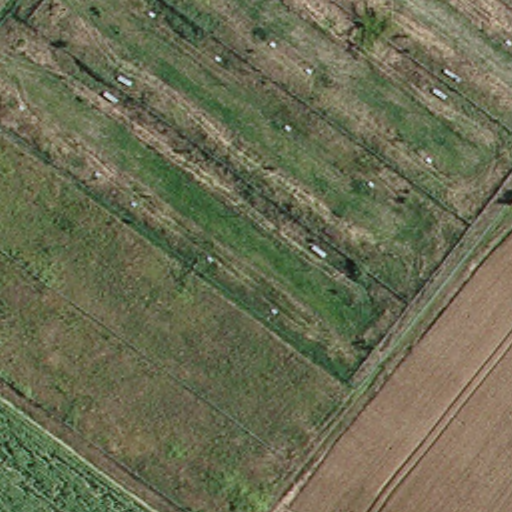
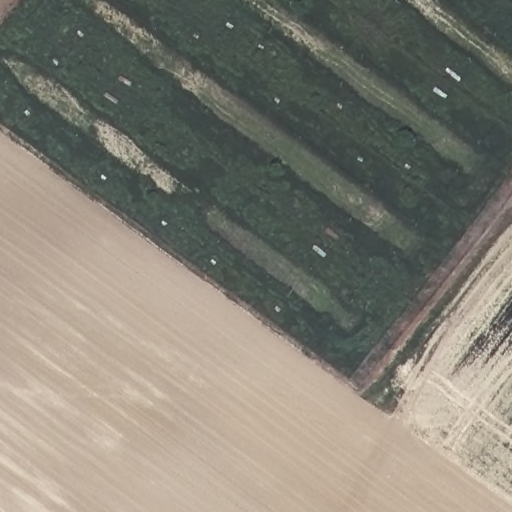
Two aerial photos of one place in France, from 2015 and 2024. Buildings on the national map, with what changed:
[]

